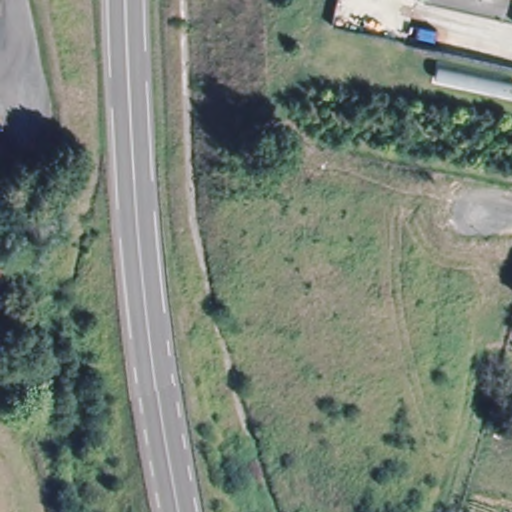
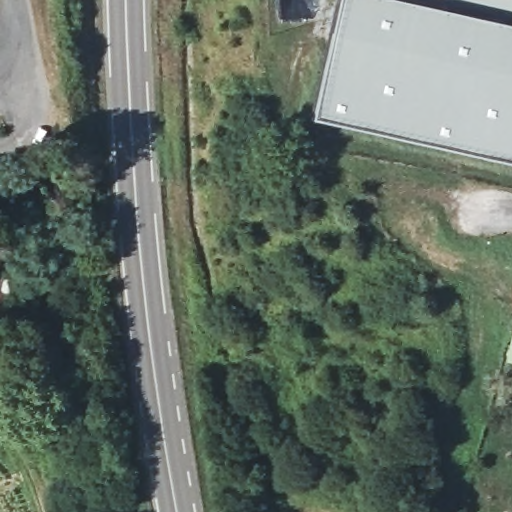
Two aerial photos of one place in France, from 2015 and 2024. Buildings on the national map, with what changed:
new [(336,0),(512,0),(512,157),(312,114),(336,0)]
new [(1,291),(6,292),(2,306),(0,305),(0,266),(6,268),(1,291)]

